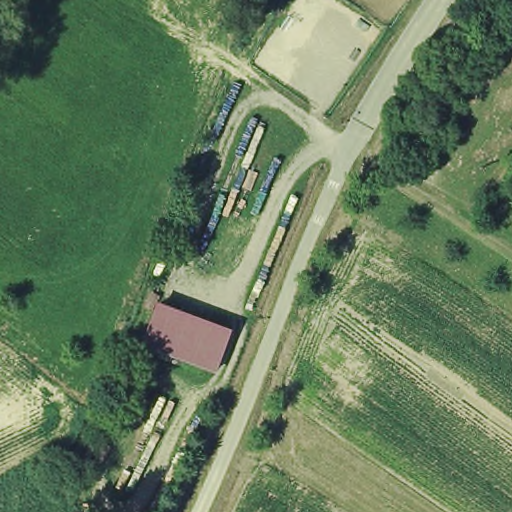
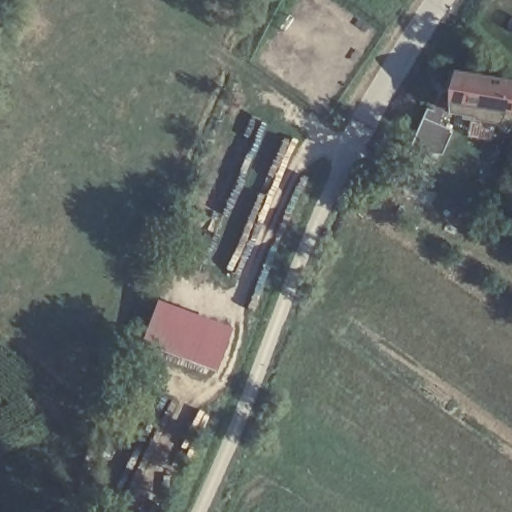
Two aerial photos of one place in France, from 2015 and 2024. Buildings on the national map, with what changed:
new [(512,78),(512,127),(445,112),(452,69),(512,78)]
unchanged [(235,325),(218,376),(139,347),(157,298),(235,325)]

